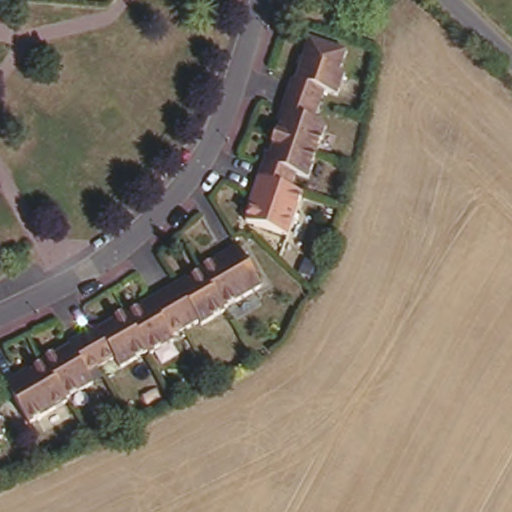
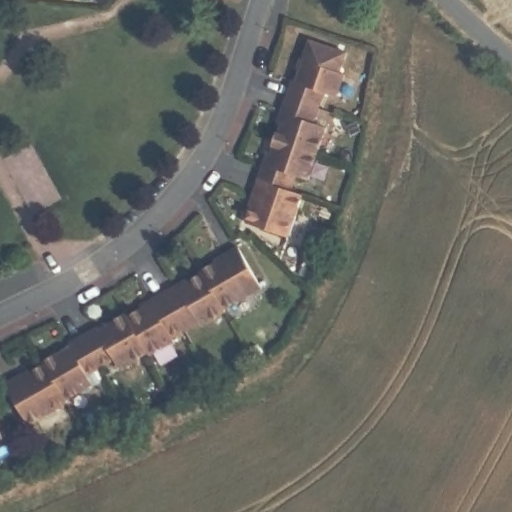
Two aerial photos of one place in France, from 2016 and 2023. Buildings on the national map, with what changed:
unchanged [(255,195),(250,193),(262,154),(269,156),(282,123),(278,120),(292,81),(300,85),(311,53),(317,39),(362,59),(346,101),(330,93),(318,121),(333,126),(307,181),(294,175),(288,192),(300,198),(283,241),(243,223),(255,195)]
unchanged [(241,253),(264,294),(30,425),(6,383),(241,253)]
unchanged [(0,447),(0,434),(6,445),(0,447)]

